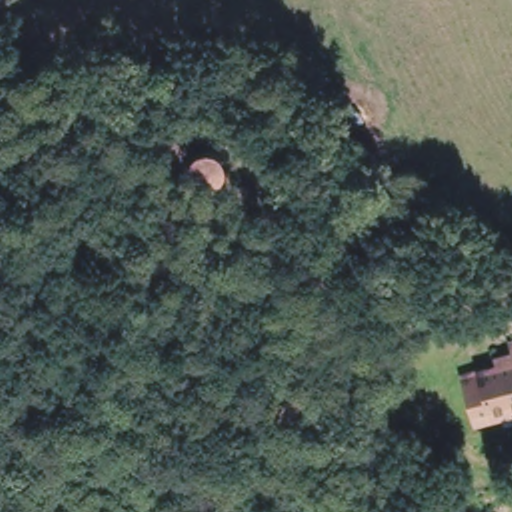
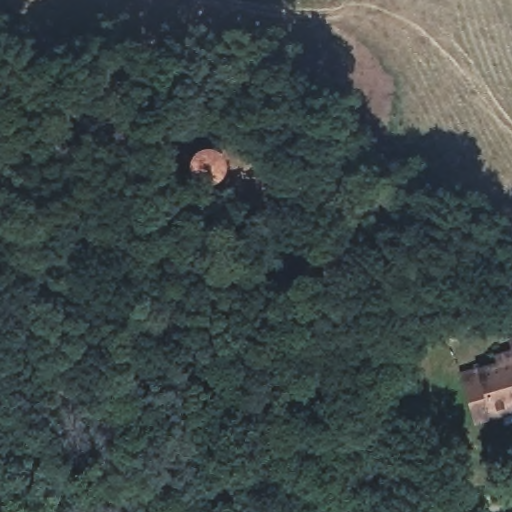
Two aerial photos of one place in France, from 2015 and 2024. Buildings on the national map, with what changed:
unchanged [(468,369),(512,356),(512,411),(485,418),(468,369)]

